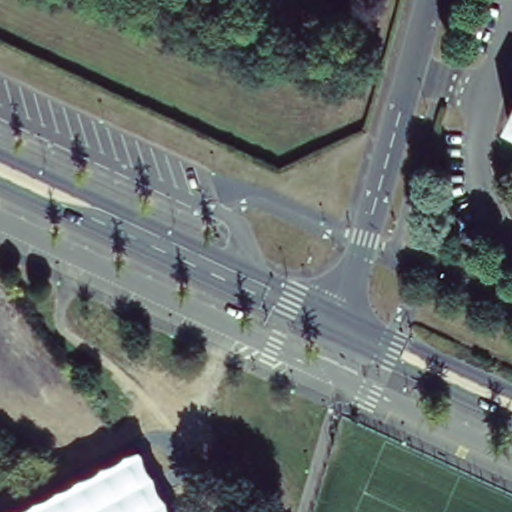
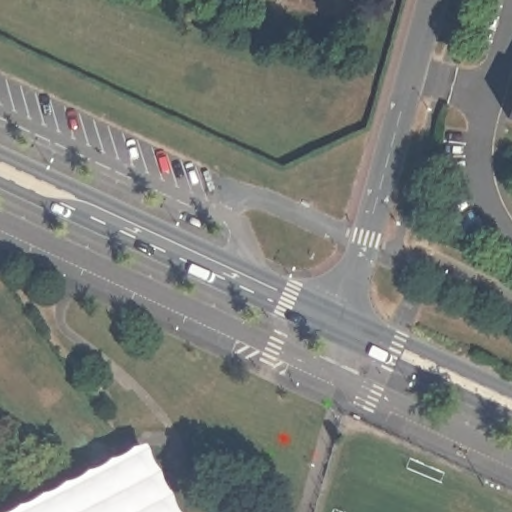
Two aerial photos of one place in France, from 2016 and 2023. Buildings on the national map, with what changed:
unchanged [(512,113),(512,117),(510,116),(512,113)]
unchanged [(160,512),(35,512),(134,462),(160,512)]

